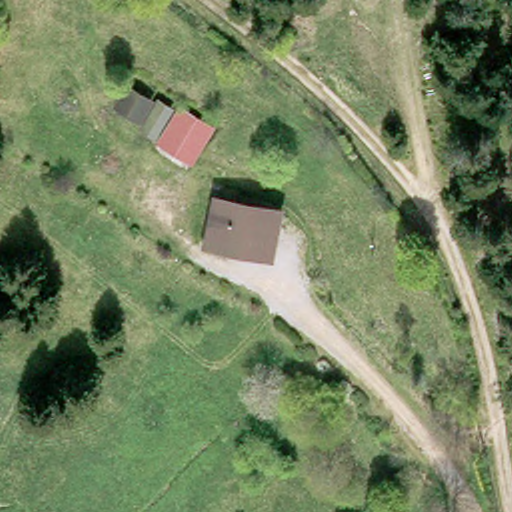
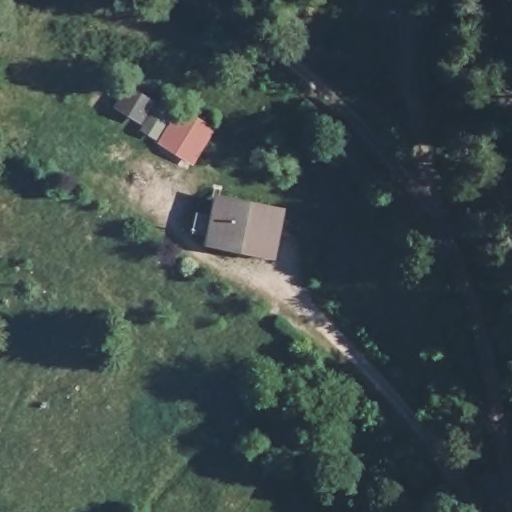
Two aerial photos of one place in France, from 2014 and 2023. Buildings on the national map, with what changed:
unchanged [(158,105),(175,114),(180,111),(216,133),(192,166),(139,135),(141,129),(117,115),(128,93),(158,105)]
unchanged [(268,255),(210,242),(218,205),(276,218),(268,255)]

